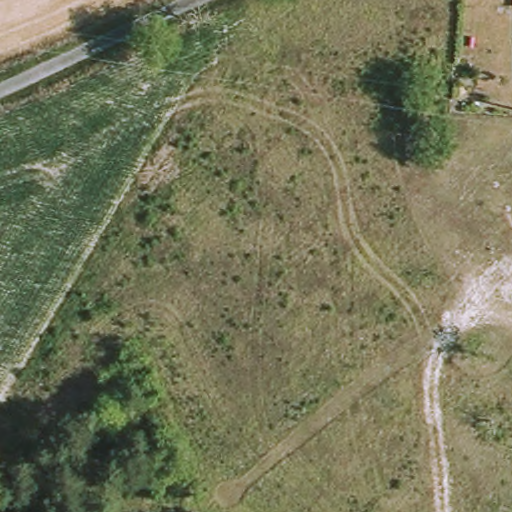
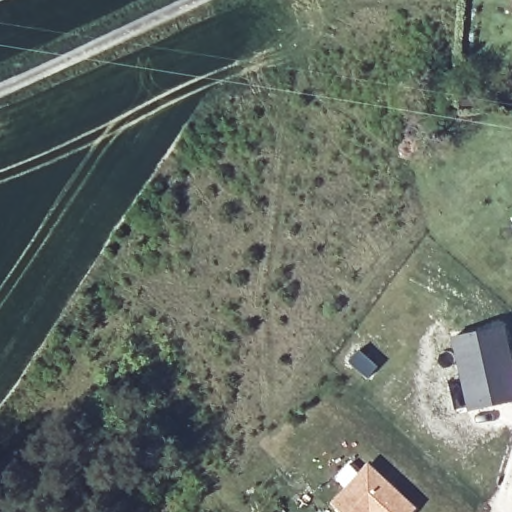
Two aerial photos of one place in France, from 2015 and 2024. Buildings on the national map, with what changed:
new [(512,353),(512,400),(457,414),(450,381),(466,376),(457,336),(506,325),(512,353)]
new [(371,462),(418,506),(413,512),(345,512),(335,503),(371,462)]

